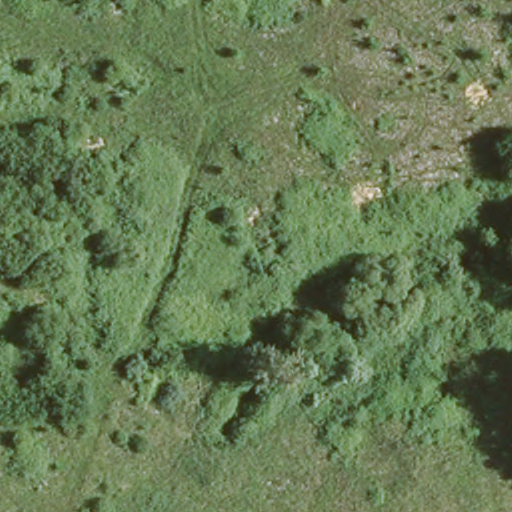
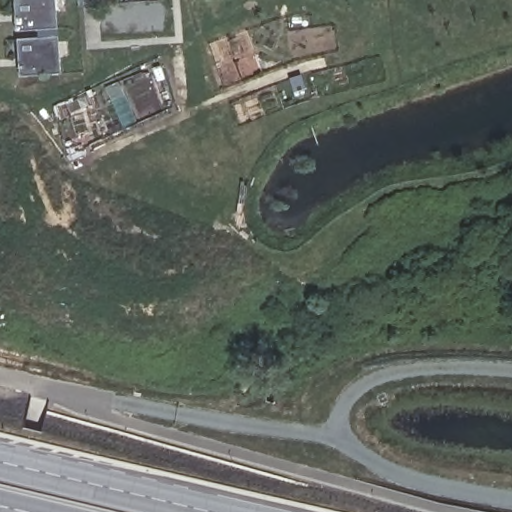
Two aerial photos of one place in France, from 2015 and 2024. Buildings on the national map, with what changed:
new [(56,0),(57,28),(16,30),(14,0),(56,0)]
new [(58,35),(61,74),(20,76),(17,37),(58,35)]

